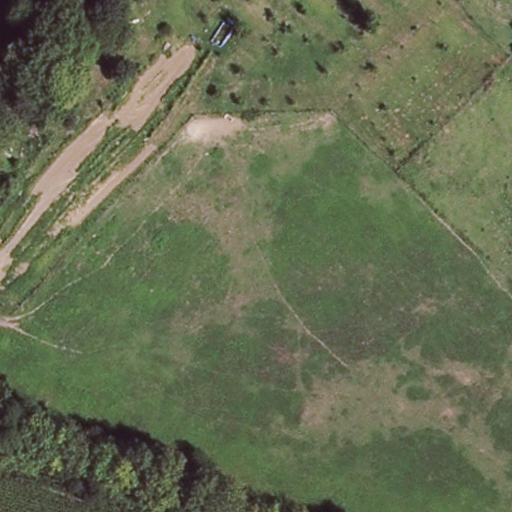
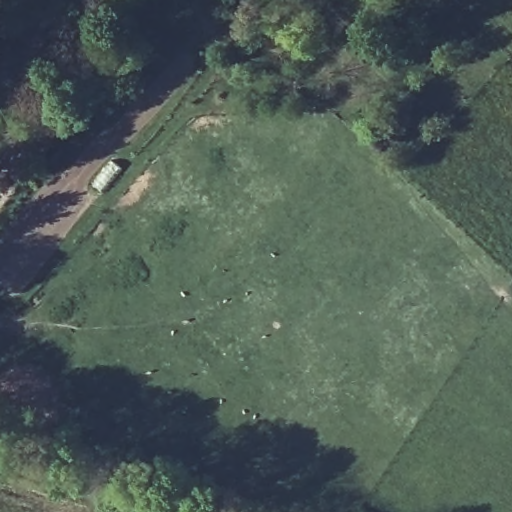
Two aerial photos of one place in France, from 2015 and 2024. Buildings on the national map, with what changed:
[]

